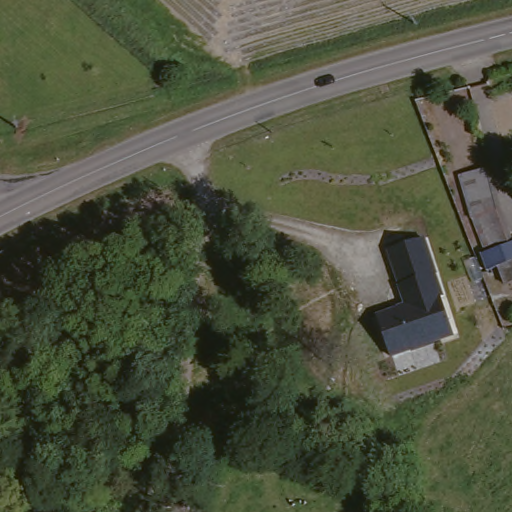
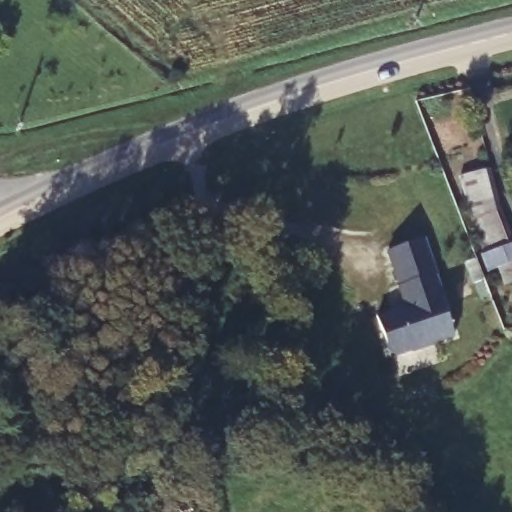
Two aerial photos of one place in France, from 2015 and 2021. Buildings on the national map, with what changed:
unchanged [(375,314),(402,305),(386,250),(426,239),(455,337),(390,359),(375,314)]

